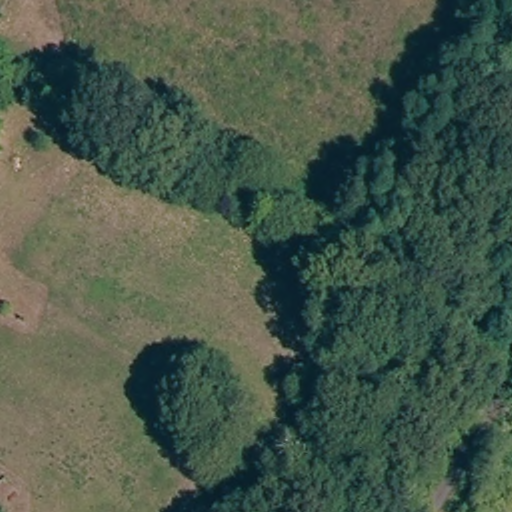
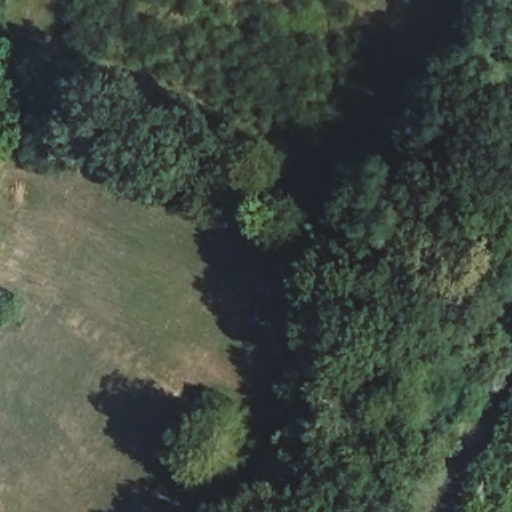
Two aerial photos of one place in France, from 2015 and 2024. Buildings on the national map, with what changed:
[]

